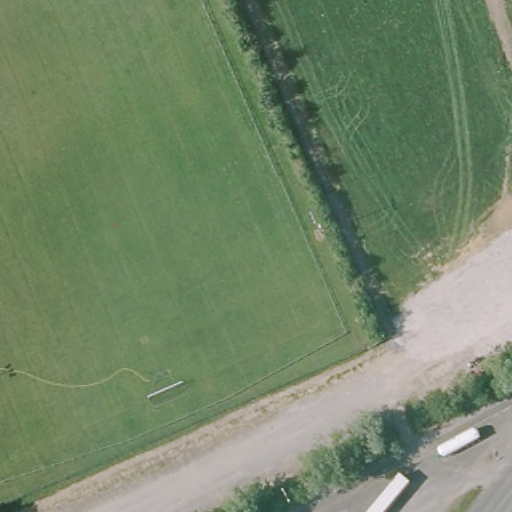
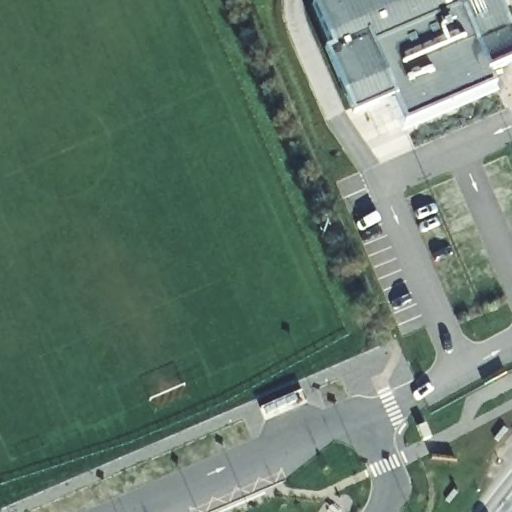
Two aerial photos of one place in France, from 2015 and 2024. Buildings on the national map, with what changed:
new [(512,28),(512,59),(490,69),(495,84),(406,122),(397,97),(350,119),(317,45),(325,42),(310,0),(312,0),(500,0),(512,28)]

